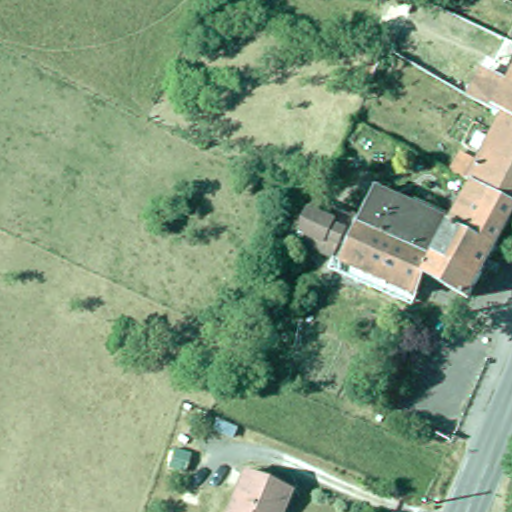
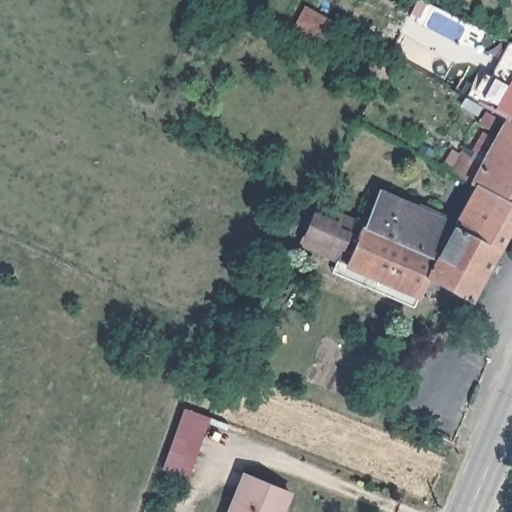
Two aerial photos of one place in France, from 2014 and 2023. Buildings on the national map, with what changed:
unchanged [(498,82),(512,57),(512,120),(497,112),(496,114),(461,95),(474,69),(498,82)]
unchanged [(472,160),(496,114),(497,112),(512,120),(512,209),(508,207),(509,206),(468,182),(444,170),(455,150),(472,160)]
unchanged [(354,222),(371,186),(392,196),(391,197),(445,222),(468,182),(509,206),(508,207),(461,297),(418,274),(409,292),(289,240),(307,201),(354,222)]
new [(190,406),(210,414),(187,468),(168,460),(190,406)]
unchanged [(222,512),(241,467),(285,486),(275,512),(222,512)]

